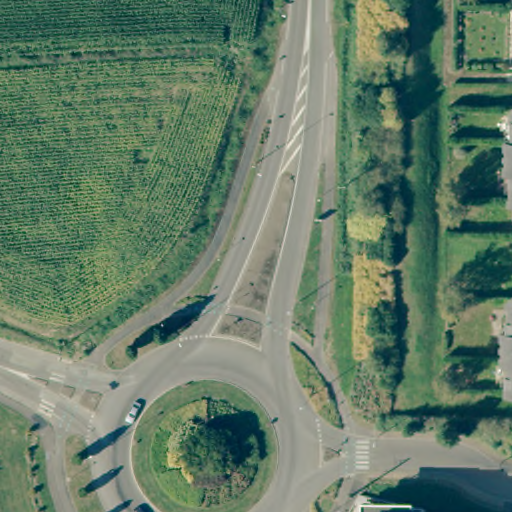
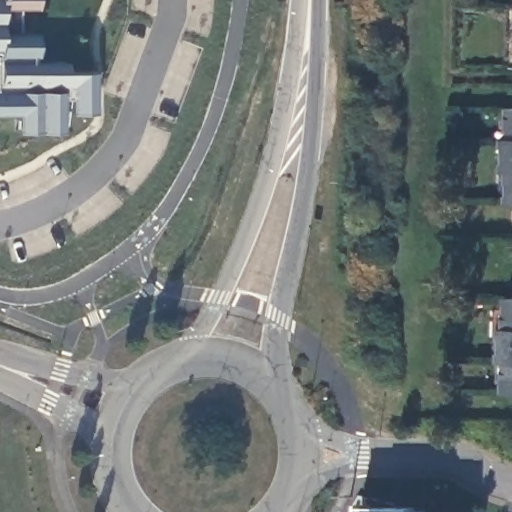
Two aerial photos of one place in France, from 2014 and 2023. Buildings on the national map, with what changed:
new [(36,7),(24,7),(24,33),(34,33),(35,61),(66,61),(67,70),(94,69),(95,113),(70,113),(69,100),(62,100),(63,132),(17,132),(17,116),(0,116),(0,0),(36,0),(36,7)]
unchanged [(512,207),(510,207),(510,176),(505,175),(505,143),(511,143),(511,111),(512,112),(512,207)]
unchanged [(507,365),(502,365),(502,332),(507,332),(507,301),(512,302),(512,396),(506,396),(507,365)]
unchanged [(363,504),(374,504),(373,508),(415,508),(415,512),(363,512),(363,508),(363,504)]
unchanged [(426,512),(415,512),(426,511),(426,512)]

